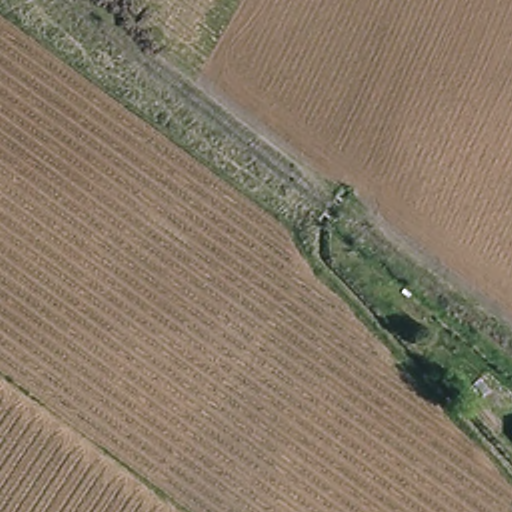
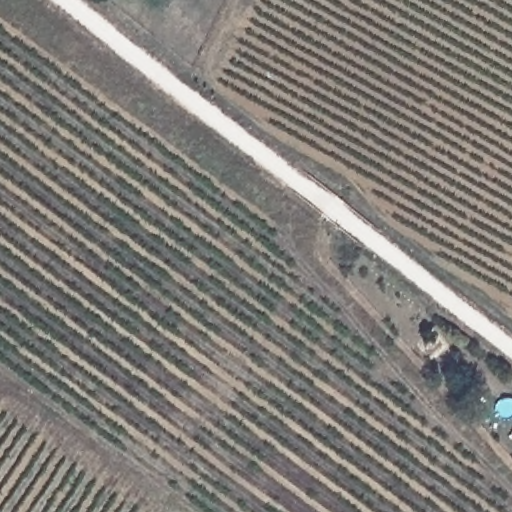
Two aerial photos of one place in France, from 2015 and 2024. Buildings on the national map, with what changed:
[]

